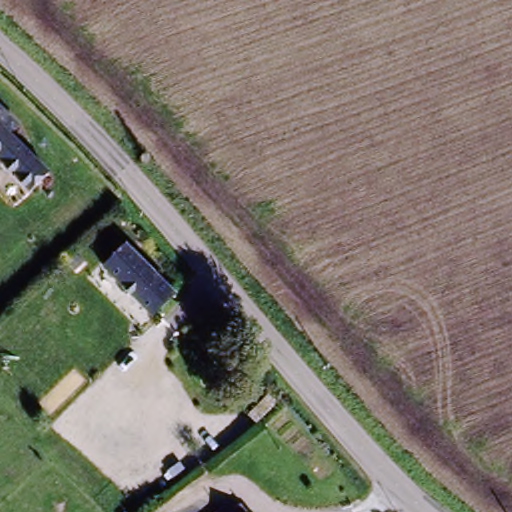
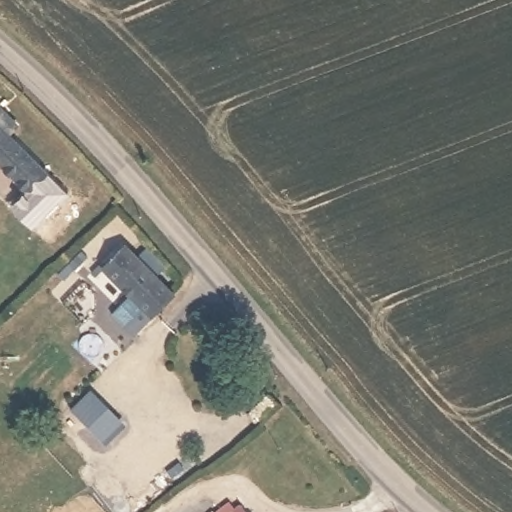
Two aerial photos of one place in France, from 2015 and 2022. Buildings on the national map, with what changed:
unchanged [(22,191),(0,167),(0,102),(16,119),(5,129),(42,173),(22,191)]
unchanged [(127,243),(168,290),(144,313),(102,264),(127,243)]
new [(91,392),(124,425),(107,443),(73,409),(91,392)]
unchanged [(227,512),(236,505),(241,512),(227,512)]

